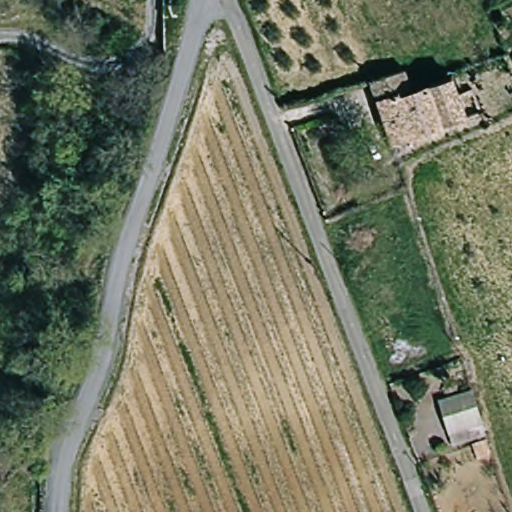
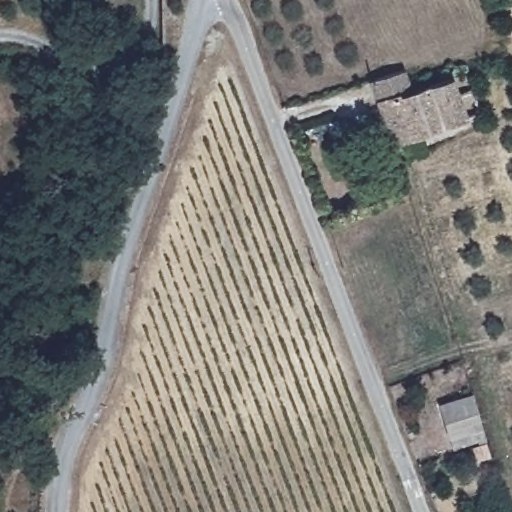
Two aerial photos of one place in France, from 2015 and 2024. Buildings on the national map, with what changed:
unchanged [(471,88),(479,114),(389,144),(374,99),(367,80),(383,74),(400,68),(408,87),(409,90),(451,78),(455,93),(471,88)]
unchanged [(478,432),(465,436),(464,430),(444,436),(434,402),(467,392),(478,432)]
unchanged [(480,437),(485,450),(468,456),(464,442),(480,437)]

